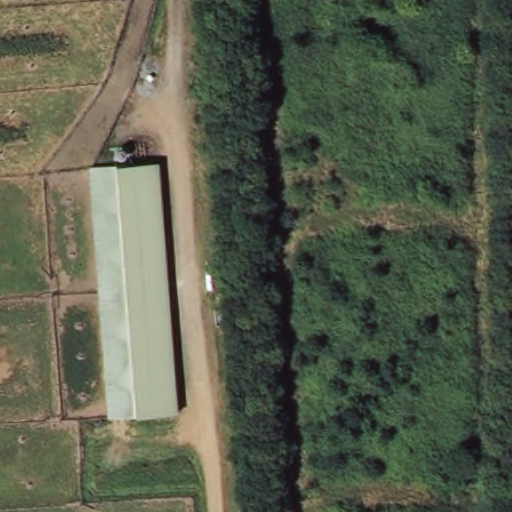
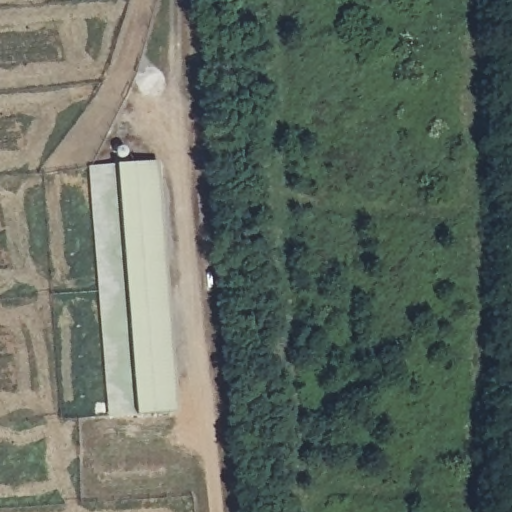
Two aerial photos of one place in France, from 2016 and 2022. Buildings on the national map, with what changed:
unchanged [(175,412),(135,416),(116,168),(155,165),(175,412)]
unchanged [(135,416),(107,415),(88,170),(116,168),(135,416)]

